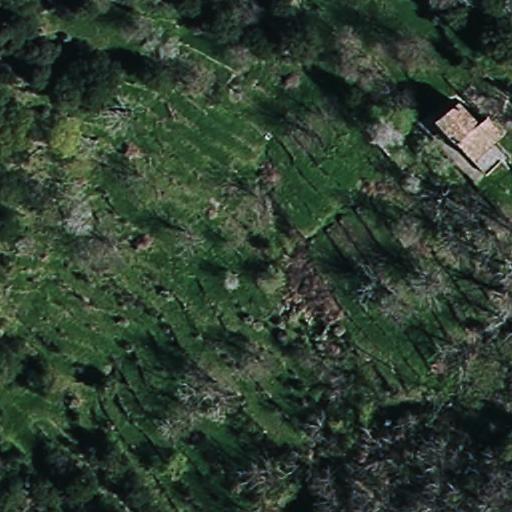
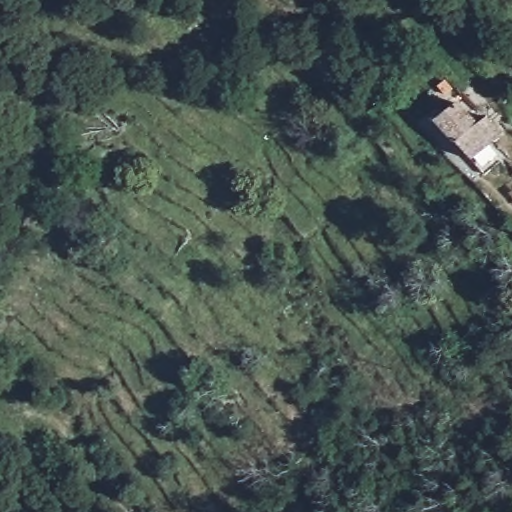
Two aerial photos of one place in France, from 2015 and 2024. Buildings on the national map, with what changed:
unchanged [(471,163),(439,122),(462,103),(478,122),(487,114),(505,132),(471,163)]

